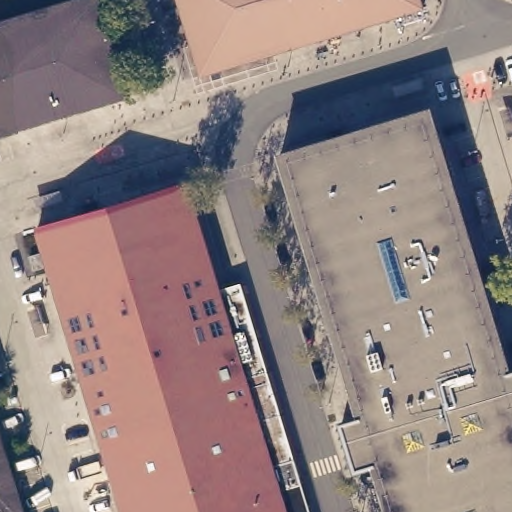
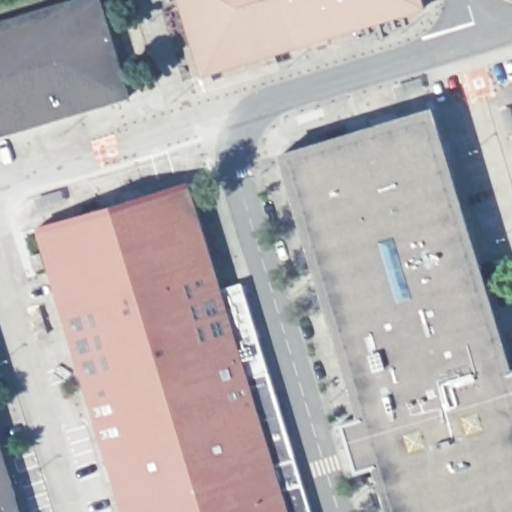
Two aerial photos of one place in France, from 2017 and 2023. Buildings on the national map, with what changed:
unchanged [(57,0),(102,0),(130,92),(0,131),(0,17),(57,0)]
unchanged [(425,8),(201,76),(187,28),(177,32),(174,21),(184,18),(179,0),(422,0),(425,8)]
unchanged [(280,150),(433,103),(512,366),(512,512),(391,512),(375,460),(357,466),(342,416),(360,411),(280,150)]
unchanged [(44,317),(30,272),(51,265),(38,222),(187,177),(220,284),(242,278),(313,512),(126,512),(65,310),(44,317)]
unchanged [(44,262),(34,265),(30,251),(40,248),(44,262)]
unchanged [(37,437),(4,447),(24,512),(0,512),(0,314),(37,437)]

